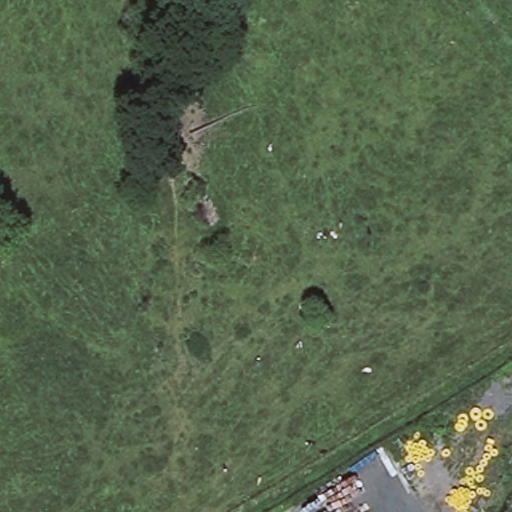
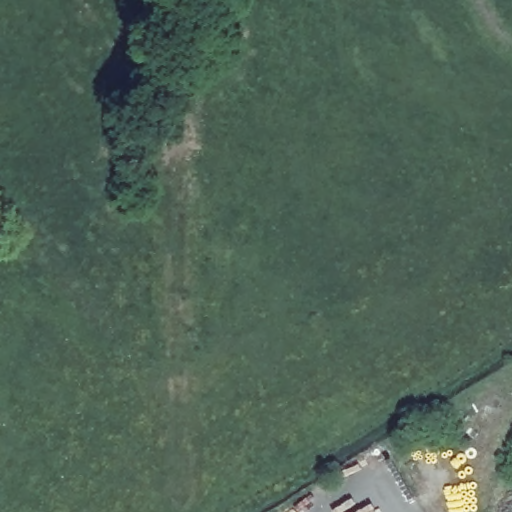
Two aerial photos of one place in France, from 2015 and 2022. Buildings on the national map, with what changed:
[]

